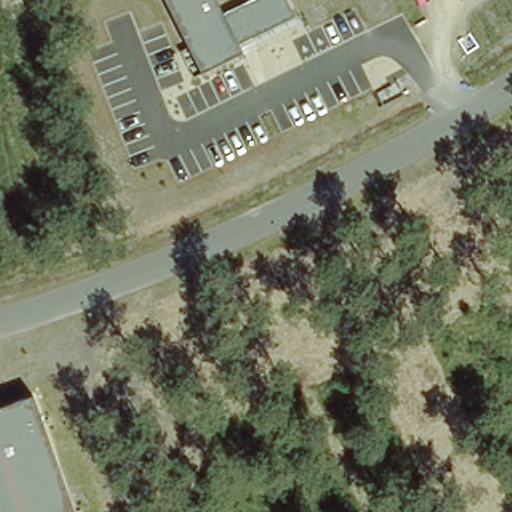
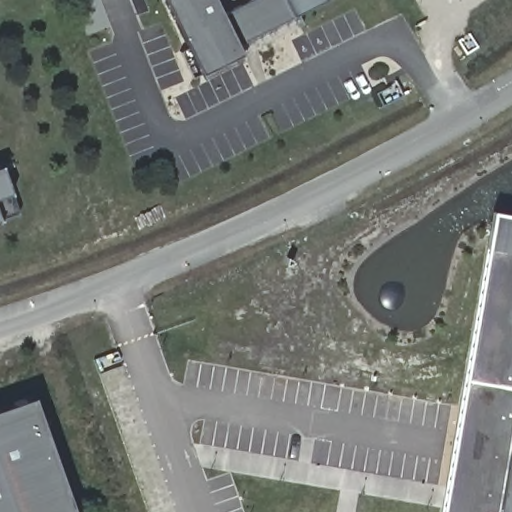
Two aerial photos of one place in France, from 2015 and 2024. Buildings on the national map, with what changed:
unchanged [(247,53),(205,71),(169,0),(218,0),(225,13),(253,0),(329,0),(298,16),(243,43),(247,53)]
new [(0,221),(0,166),(4,164),(19,215),(0,221)]
new [(495,207),(512,210),(512,512),(443,512),(495,207)]
unchanged [(0,406),(31,396),(71,512),(0,512),(0,406)]

